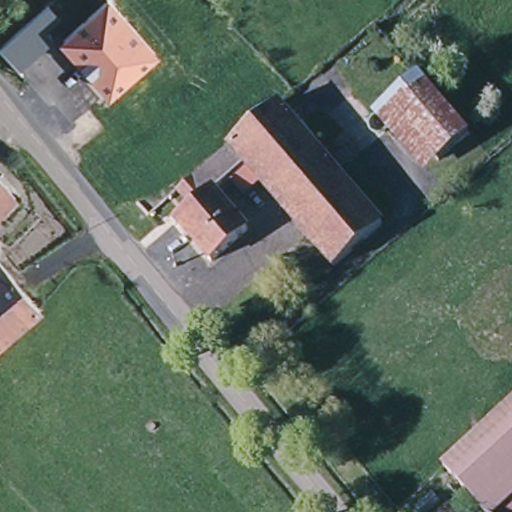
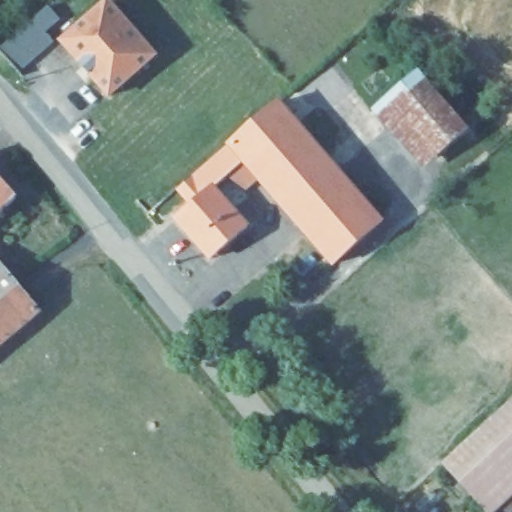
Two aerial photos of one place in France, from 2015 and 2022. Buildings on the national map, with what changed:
unchanged [(160,60),(116,100),(69,47),(59,35),(83,13),(93,25),(114,7),(160,60)]
unchanged [(408,76),(460,136),(429,164),(377,103),(408,76)]
unchanged [(385,224),(336,266),(259,176),(244,190),(229,173),(215,186),(193,205),(181,189),(232,145),(280,103),(385,224)]
unchanged [(16,200),(0,214),(0,183),(16,200)]
unchanged [(193,205),(215,186),(250,228),(213,260),(177,219),(193,205)]
unchanged [(41,312),(0,346),(0,265),(41,312)]
unchanged [(458,478),(445,464),(512,403),(512,429),(458,478)]
unchanged [(512,429),(512,500),(498,512),(489,512),(458,478),(512,429)]

